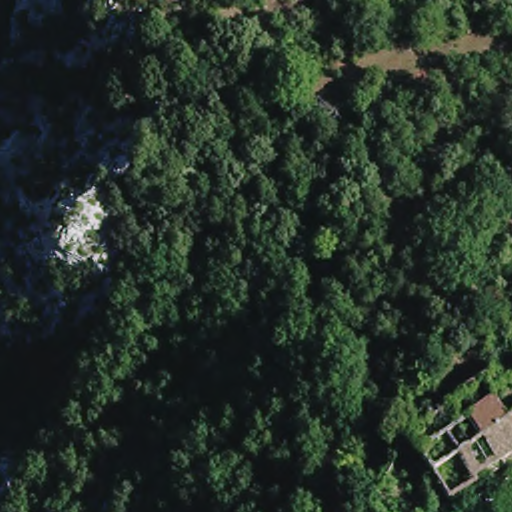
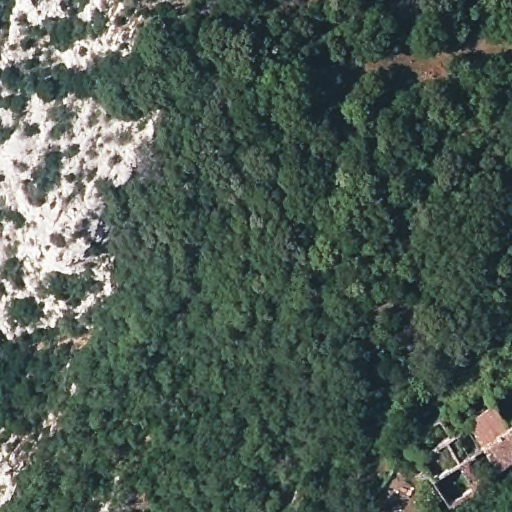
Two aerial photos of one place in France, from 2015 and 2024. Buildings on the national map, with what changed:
unchanged [(444,498),(415,445),(492,392),(503,415),(512,411),(512,456),(479,478),(444,498)]

